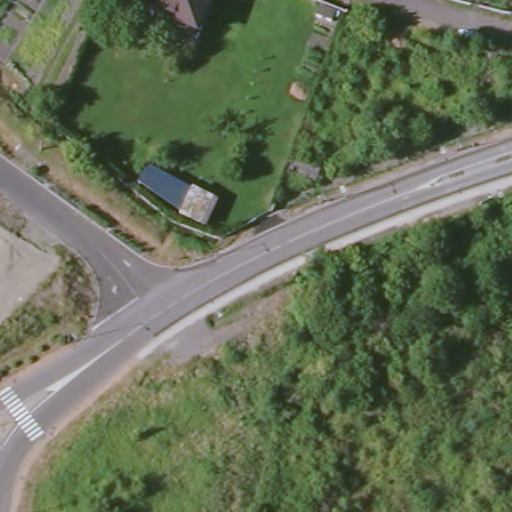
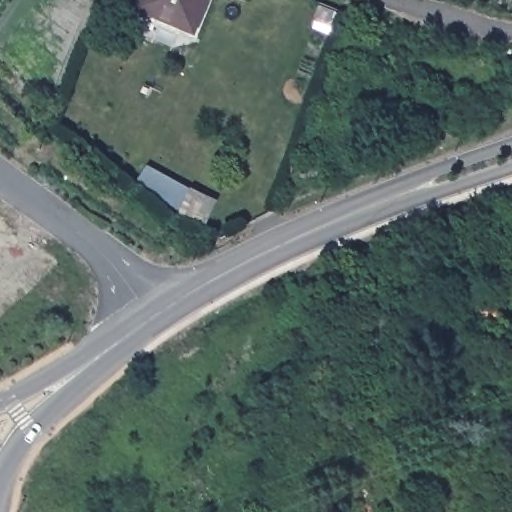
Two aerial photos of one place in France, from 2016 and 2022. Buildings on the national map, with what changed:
unchanged [(192,35),(171,25),(138,10),(140,5),(142,0),(208,0),(192,35)]
unchanged [(334,14),(331,25),(316,19),(320,9),(334,14)]
unchanged [(499,301),(495,321),(468,317),(472,297),(499,301)]

